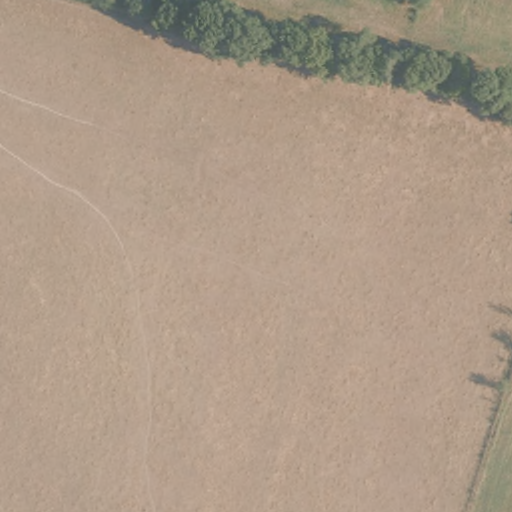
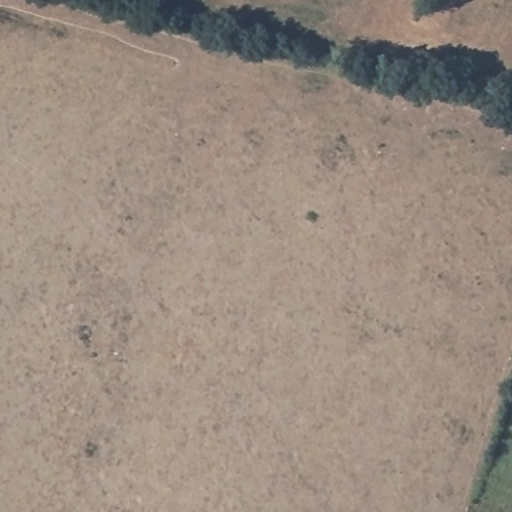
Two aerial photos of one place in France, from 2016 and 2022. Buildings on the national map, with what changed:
[]

